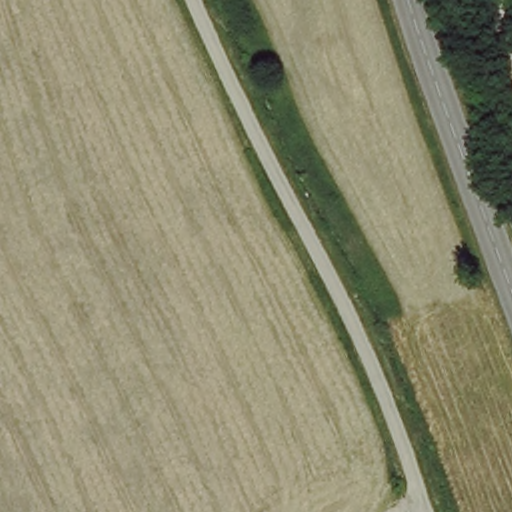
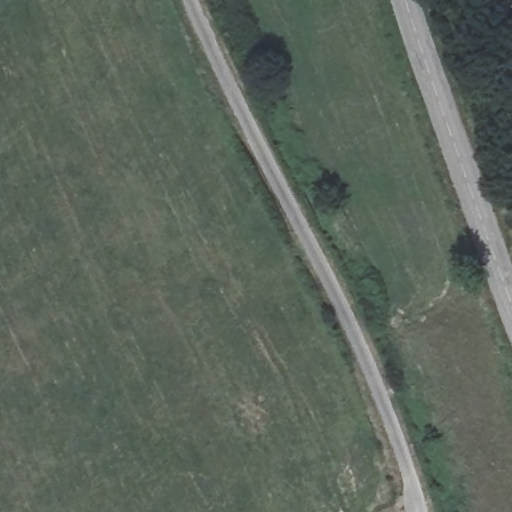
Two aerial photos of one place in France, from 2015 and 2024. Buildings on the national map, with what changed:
[]

